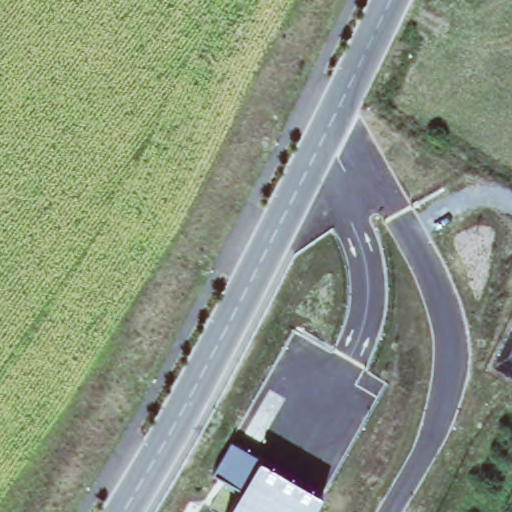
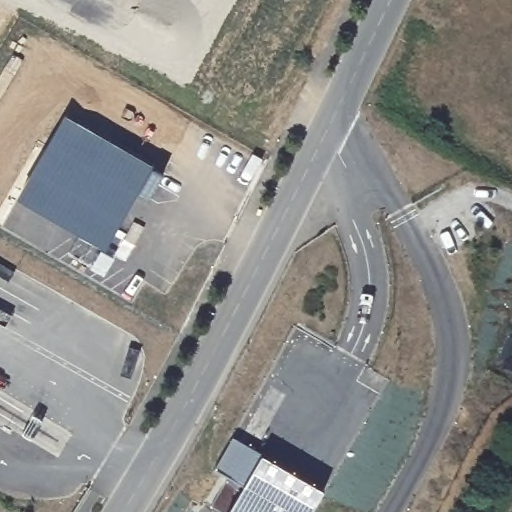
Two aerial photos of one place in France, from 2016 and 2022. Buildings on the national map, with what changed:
new [(65,120),(152,172),(151,173),(162,180),(146,205),(136,199),(109,243),(46,204),(45,205),(22,192),(65,120)]
unchanged [(244,486),(215,470),(233,437),(263,454),(324,488),(311,512),(230,512),(244,486)]

